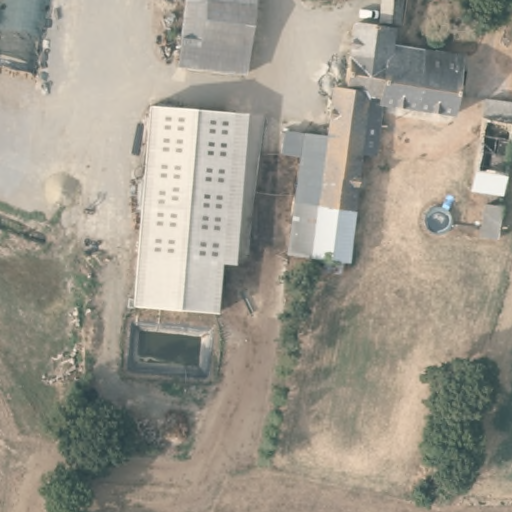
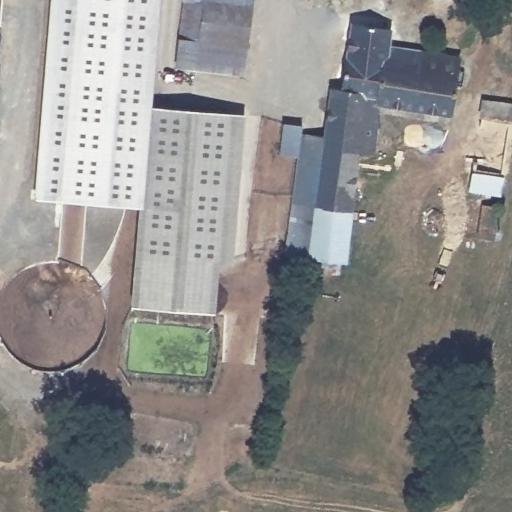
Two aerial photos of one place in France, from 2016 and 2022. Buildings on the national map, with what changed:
new [(51,0),(156,0),(147,113),(139,208),(35,198),(51,0)]
unchanged [(181,68),(187,0),(254,0),(247,74),(181,68)]
unchanged [(388,66),(385,94),(370,93),(362,150),(328,146),(329,138),(337,89),(344,90),(354,24),(393,30),(393,43),(426,48),(422,70),(388,66)]
unchanged [(462,54),(453,116),(385,105),(375,150),(362,150),(370,93),(385,94),(388,66),(422,70),(426,48),(462,54)]
unchanged [(472,175),(483,109),(512,112),(512,119),(504,179),(472,175)]
unchanged [(209,322),(129,314),(147,113),(172,115),(226,120),(214,262),(209,322)]
unchanged [(288,253),(306,134),(329,138),(328,146),(312,255),(288,253)]
unchanged [(328,146),(362,150),(346,260),(312,255),(328,146)]
unchanged [(483,238),(480,238),(486,201),(502,204),(497,239),(483,238)]

